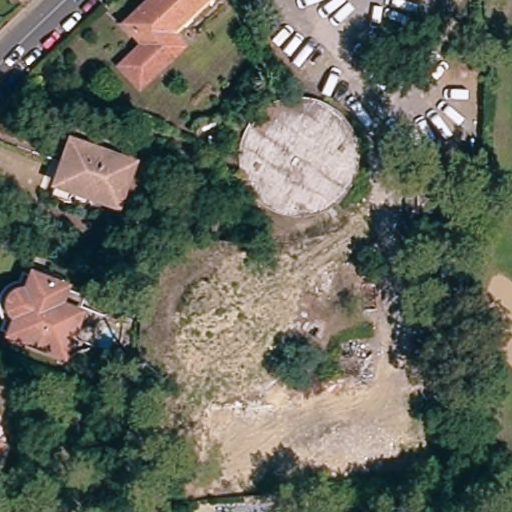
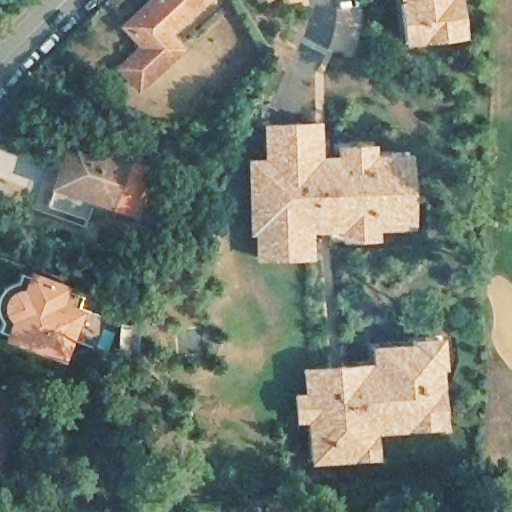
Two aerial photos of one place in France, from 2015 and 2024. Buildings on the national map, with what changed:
demolished [(0,0),(6,0),(0,11),(0,0)]
unchanged [(166,47),(170,51),(129,90),(110,70),(133,50),(114,29),(145,0),(207,0),(211,5),(166,47)]
new [(266,1),(265,0),(268,0),(266,1)]
demolished [(373,21),(337,1),(338,0),(386,0),(373,21)]
new [(464,36),(403,43),(398,0),(460,0),(464,36)]
demolished [(405,4),(399,0),(407,0),(405,4)]
new [(341,229),(313,231),(314,259),(257,261),(257,236),(250,236),(248,159),(263,157),(262,122),(320,120),(323,155),(337,155),(336,145),(375,142),(375,154),(411,151),(414,227),(378,229),(378,239),(342,241),(341,229)]
unchanged [(70,145),(132,168),(117,211),(54,190),(70,145)]
unchanged [(15,331),(9,326),(7,323),(7,316),(9,314),(11,311),(13,308),(15,306),(17,306),(25,305),(32,290),(65,302),(59,319),(80,327),(62,370),(8,349),(15,331)]
new [(370,345),(410,342),(410,338),(443,335),(446,369),(442,370),(445,427),(375,433),(376,458),(310,463),(306,423),(295,424),(293,393),(304,392),(302,367),(370,363),(370,345)]
demolished [(340,403),(343,446),(403,441),(405,466),(205,483),(199,415),(340,403)]
unchanged [(0,453),(0,448),(1,448),(0,453)]

